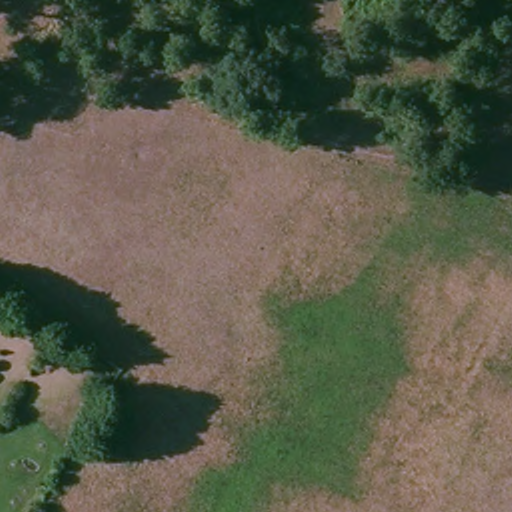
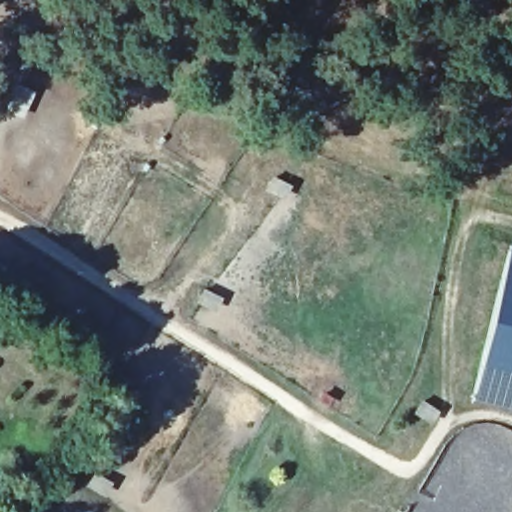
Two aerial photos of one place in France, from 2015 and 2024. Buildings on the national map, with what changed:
new [(15,82),(36,92),(22,119),(3,109),(15,82)]
new [(512,244),(512,410),(471,400),(509,243),(512,244)]
unchanged [(26,320),(34,306),(51,316),(44,330),(26,320)]

